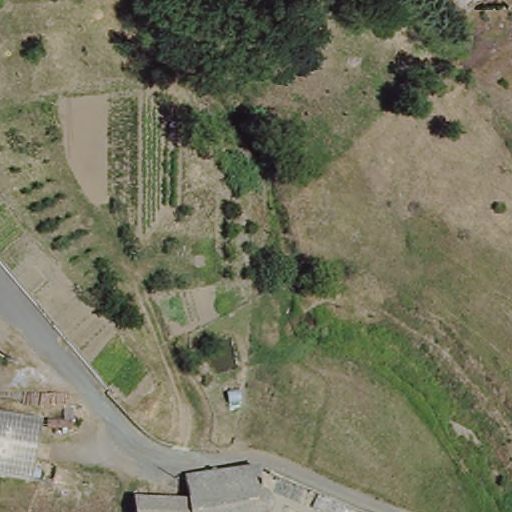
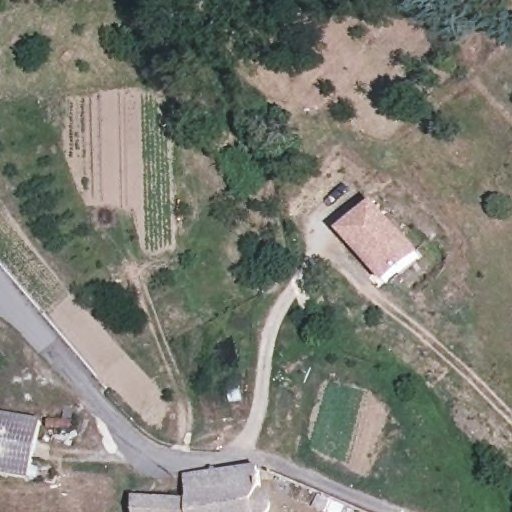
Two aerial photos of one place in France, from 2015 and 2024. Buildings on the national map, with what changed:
new [(419,254),(384,285),(336,231),(370,200),(419,254)]
unchanged [(36,417),(31,460),(0,454),(0,412),(36,417)]
unchanged [(28,480),(0,476),(0,454),(31,460),(28,480)]
unchanged [(185,474),(258,466),(259,493),(264,495),(268,498),(271,503),(272,508),(271,512),(187,512),(186,495),(185,474)]
unchanged [(132,496),(186,495),(187,512),(133,512),(132,496)]

